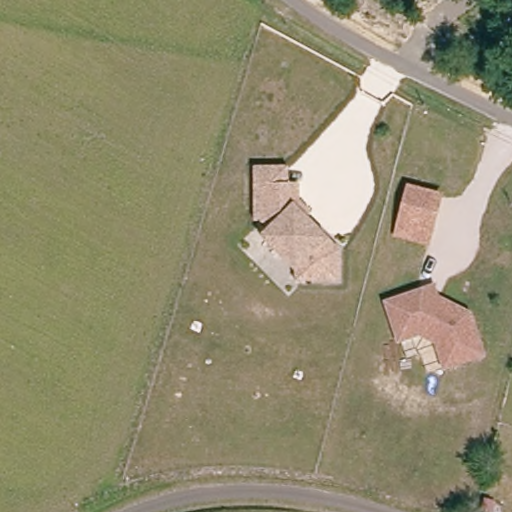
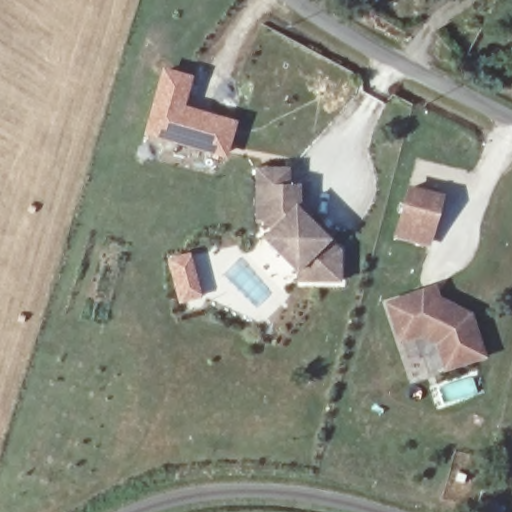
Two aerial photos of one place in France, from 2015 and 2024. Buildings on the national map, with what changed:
new [(192,75),(184,105),(237,120),(227,159),(142,135),(162,66),(192,75)]
unchanged [(259,235),(265,230),(267,227),(259,219),(252,219),(253,165),(287,166),(287,182),(298,182),(297,200),(309,212),(306,215),(338,247),(338,278),(302,278),(295,278),(294,269),(259,235)]
unchanged [(434,229),(419,225),(415,240),(400,236),(411,190),(442,198),(434,229)]
unchanged [(480,350),(445,362),(437,338),(419,329),(399,336),(387,300),(421,288),(431,285),(435,295),(467,310),(480,350)]

